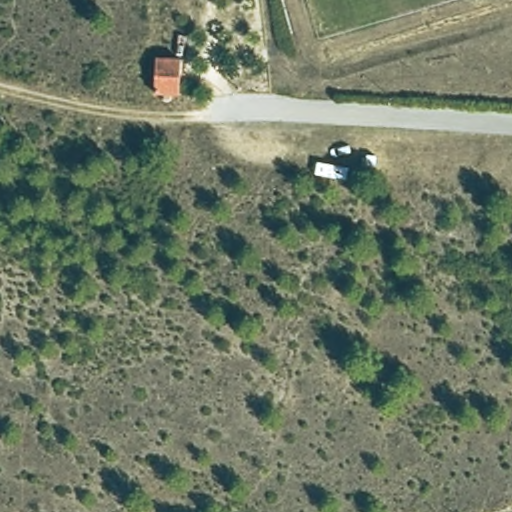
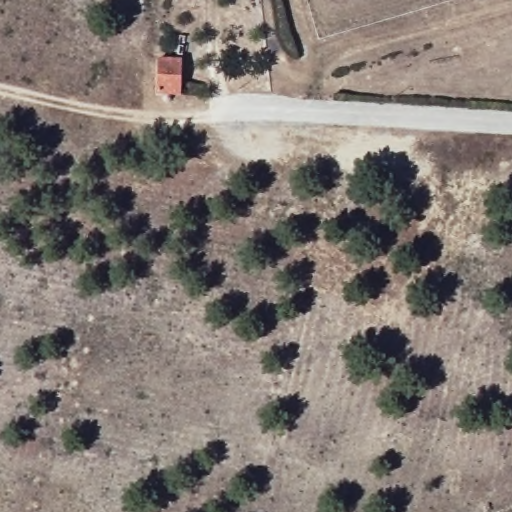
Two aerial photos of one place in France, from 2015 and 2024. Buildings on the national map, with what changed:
unchanged [(178,91),(169,91),(168,99),(158,99),(158,90),(151,90),(152,53),(178,54),(178,91)]

